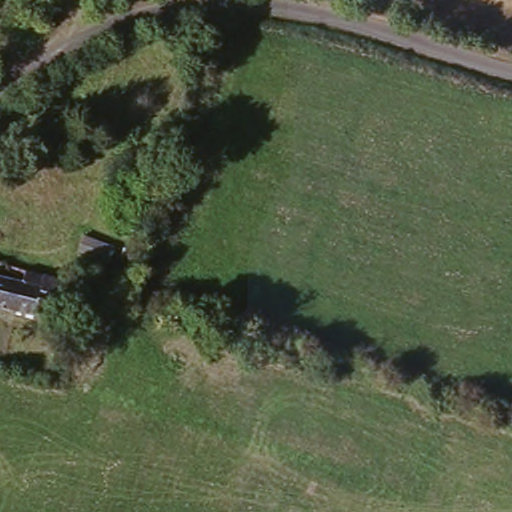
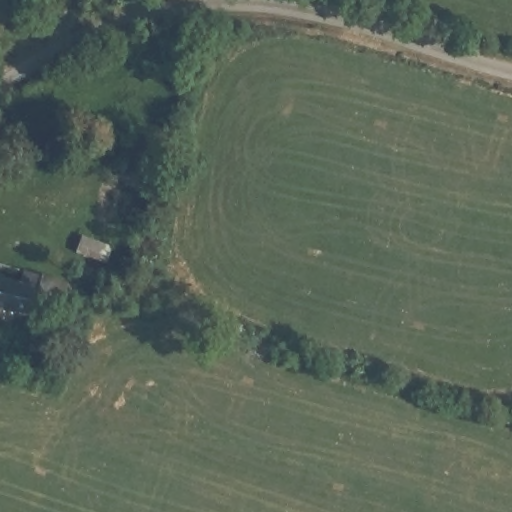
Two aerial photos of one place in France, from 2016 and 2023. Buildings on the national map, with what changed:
unchanged [(15,280),(16,280),(19,281),(20,281),(56,291),(56,292),(49,315),(25,307),(23,319),(0,313),(0,287),(12,290),(15,280)]

